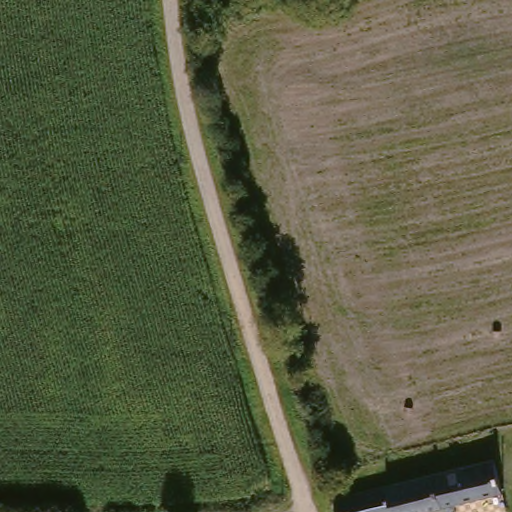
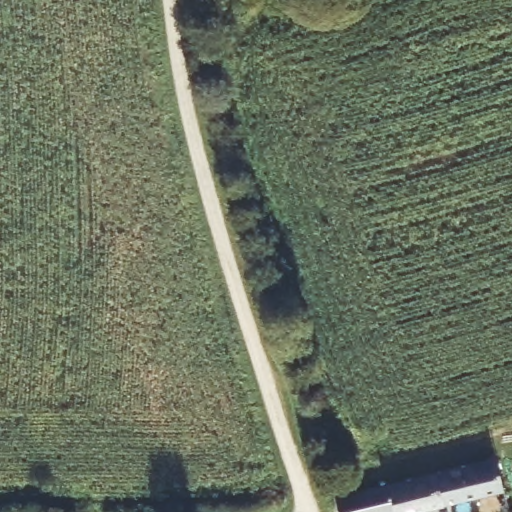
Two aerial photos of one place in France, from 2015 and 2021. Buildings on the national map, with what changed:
unchanged [(504,457),(511,482),(490,487),(491,490),(402,512),(323,512),(321,506),(484,462),(504,457)]

